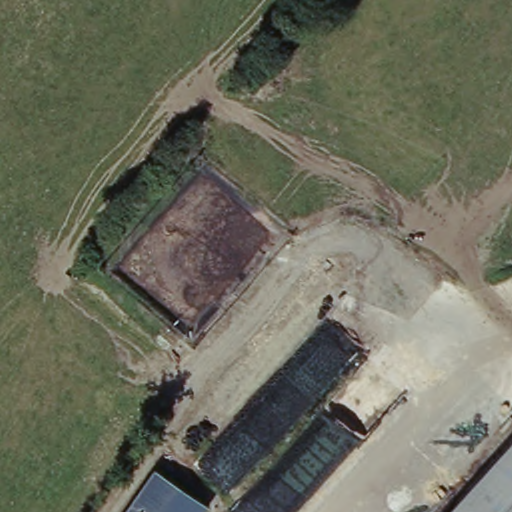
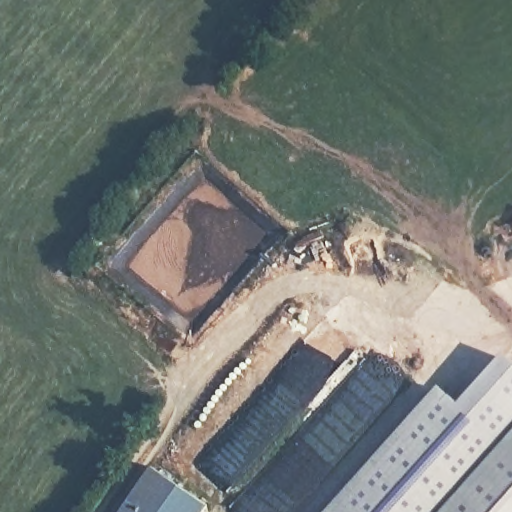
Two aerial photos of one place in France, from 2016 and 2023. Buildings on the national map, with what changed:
new [(440,386),(460,402),(505,354),(512,360),(512,434),(442,512),(327,512),(440,386)]
unchanged [(512,435),(512,512),(442,512),(512,435)]
unchanged [(150,474),(204,511),(203,512),(123,512),(150,474)]

